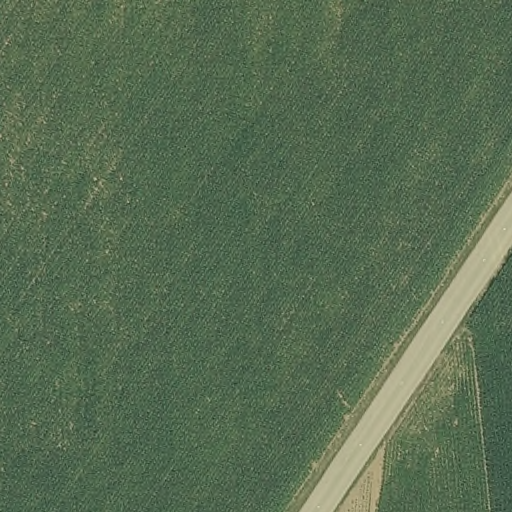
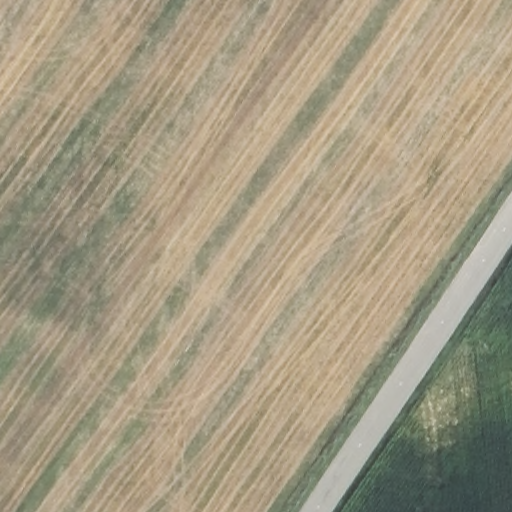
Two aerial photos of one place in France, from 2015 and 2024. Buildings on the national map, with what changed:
[]

